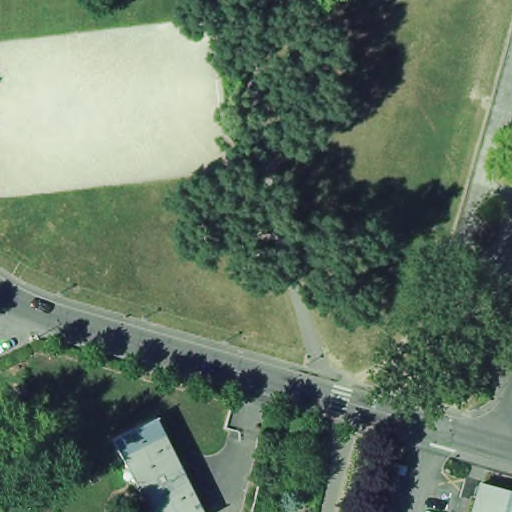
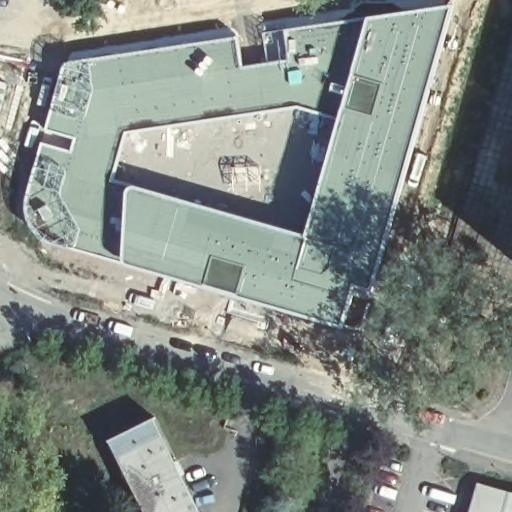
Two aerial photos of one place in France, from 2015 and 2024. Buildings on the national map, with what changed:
new [(125,196),(129,182),(187,197),(304,232),(336,119),(355,57),(364,24),(364,15),(398,9),(453,3),(450,20),(420,120),(392,227),(372,291),(358,287),(345,326),(231,292),(120,261),(125,196)]
new [(42,128),(64,60),(239,34),(244,62),(265,60),(260,29),(364,15),(364,24),(355,57),(336,119),(302,110),(290,110),(126,132),(112,179),(129,182),(125,196),(120,261),(75,250),(81,227),(80,227),(61,194),(71,150),(39,140),(42,128)]
unchanged [(512,35),(512,295),(443,275),(512,35)]
new [(23,200),(39,140),(71,150),(61,194),(80,227),(81,227),(75,250),(50,245),(41,241),(33,234),(25,222),(22,210),(23,200)]
unchanged [(115,439),(157,418),(204,512),(152,512),(115,439)]
unchanged [(485,485),(512,492),(512,512),(477,512),(485,485)]

